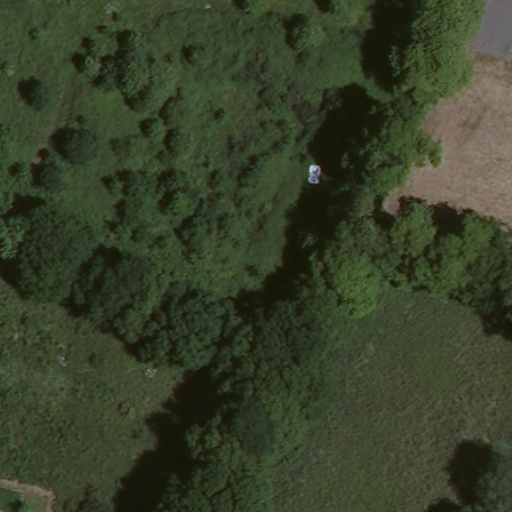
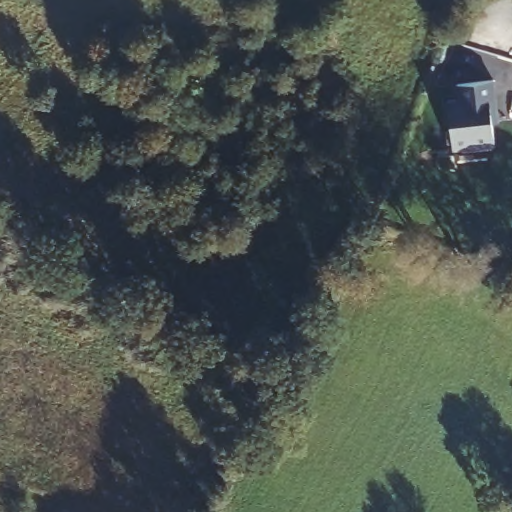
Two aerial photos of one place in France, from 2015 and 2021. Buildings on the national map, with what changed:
new [(458,102),(456,87),(492,82),(496,117),(491,119),(494,147),(453,152),(446,104),(458,102)]

